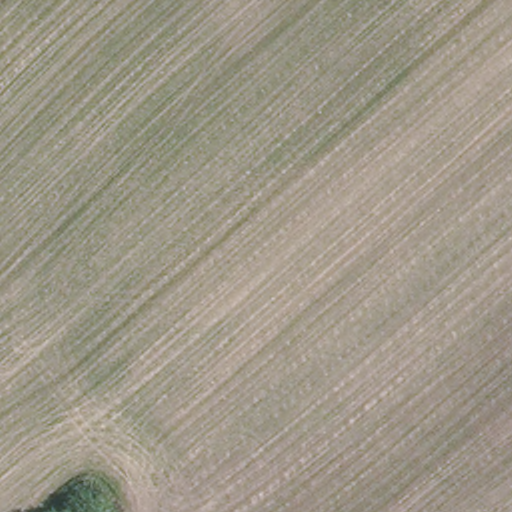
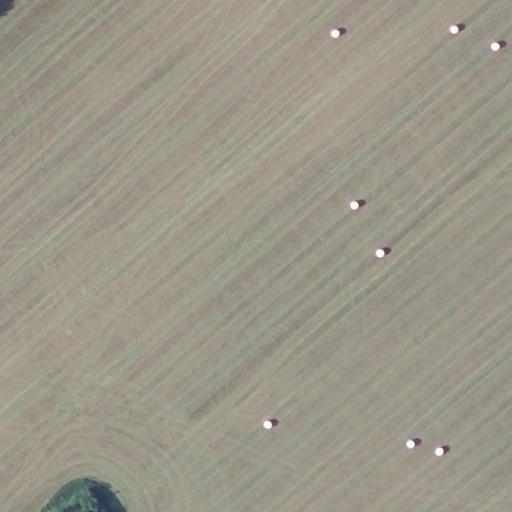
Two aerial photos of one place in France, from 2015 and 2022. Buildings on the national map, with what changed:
[]

